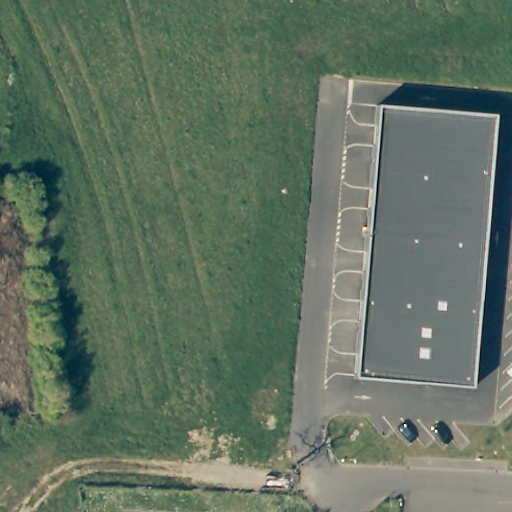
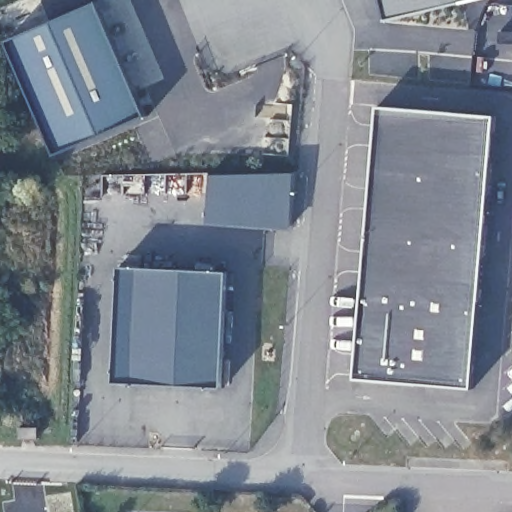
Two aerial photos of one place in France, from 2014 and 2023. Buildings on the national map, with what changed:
new [(382,0),(471,0),(386,20),(382,0)]
new [(57,156),(6,42),(97,4),(147,116),(57,156)]
unchanged [(495,117),(472,388),(355,380),(378,108),(495,117)]
new [(224,388),(114,383),(120,267),(229,272),(224,388)]

